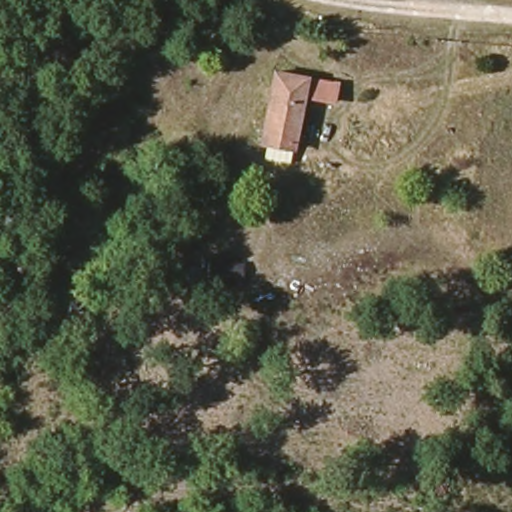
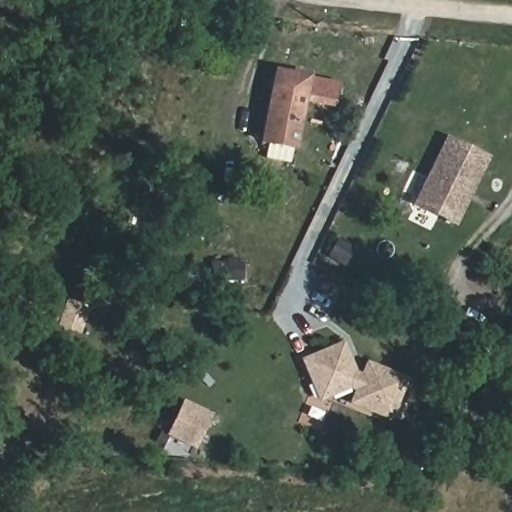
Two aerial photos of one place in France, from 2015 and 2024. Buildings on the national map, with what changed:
unchanged [(316,70),(310,140),(258,133),(265,64),(316,70)]
unchanged [(258,133),(310,140),(308,167),(255,162),(258,133)]
new [(413,206),(446,137),(489,157),(456,227),(413,206)]
unchanged [(148,202),(185,218),(177,239),(141,224),(148,202)]
new [(350,389),(318,402),(301,359),(344,341),(356,372),(361,374),(366,362),(409,379),(391,420),(349,403),(354,391),(350,389)]
new [(194,449),(165,435),(182,399),(213,413),(194,449)]

